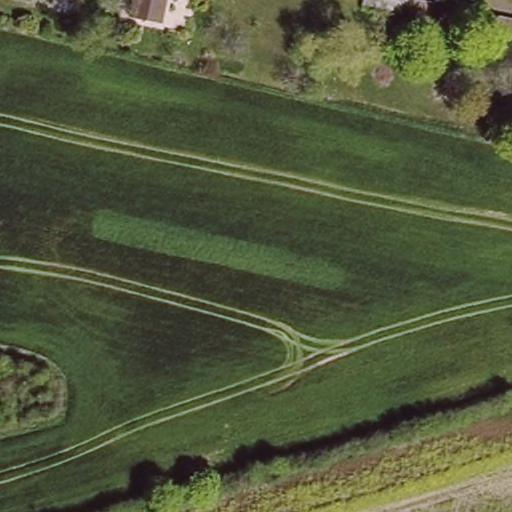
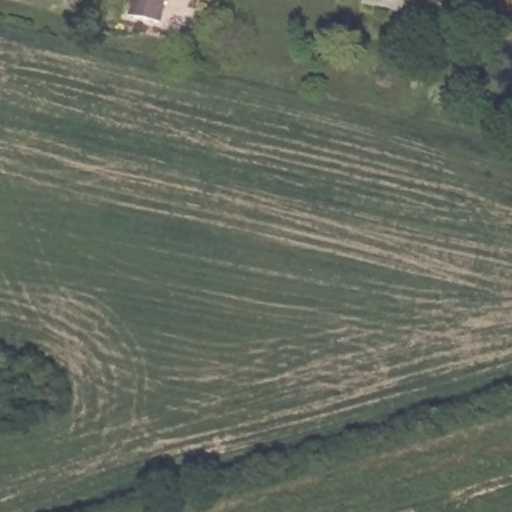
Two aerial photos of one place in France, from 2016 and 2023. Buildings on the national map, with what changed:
unchanged [(161,23),(127,17),(131,0),(165,0),(161,23)]
unchanged [(395,8),(357,0),(396,0),(395,8)]

